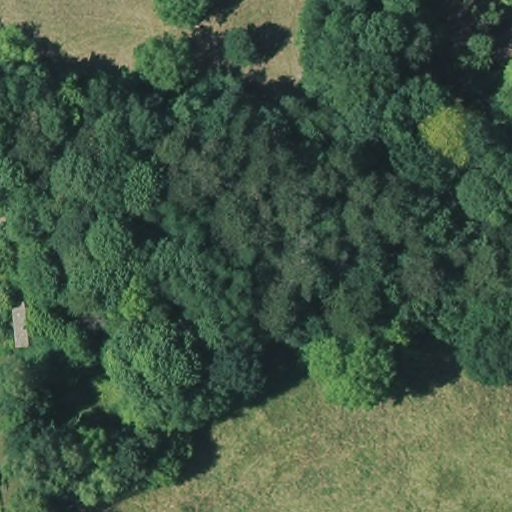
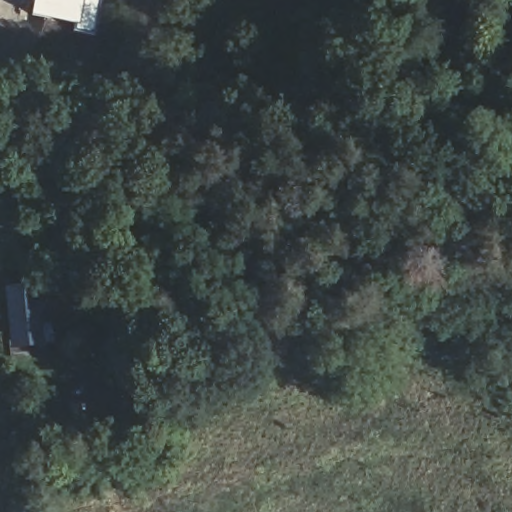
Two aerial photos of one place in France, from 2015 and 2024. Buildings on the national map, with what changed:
new [(32,0),(83,0),(78,27),(29,17),(32,0)]
new [(91,32),(78,27),(83,0),(97,0),(91,32)]
unchanged [(38,320),(51,320),(51,335),(16,339),(10,282),(34,280),(38,320)]

